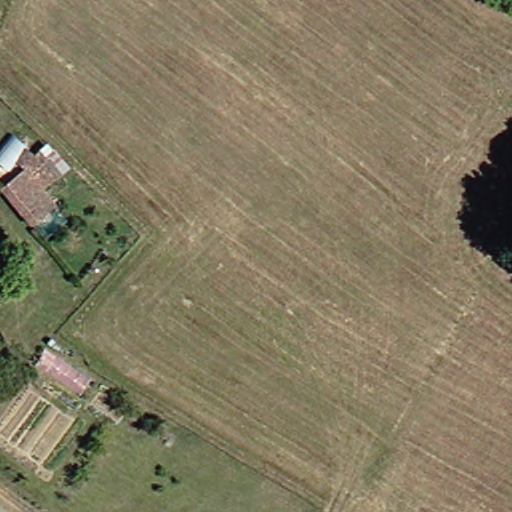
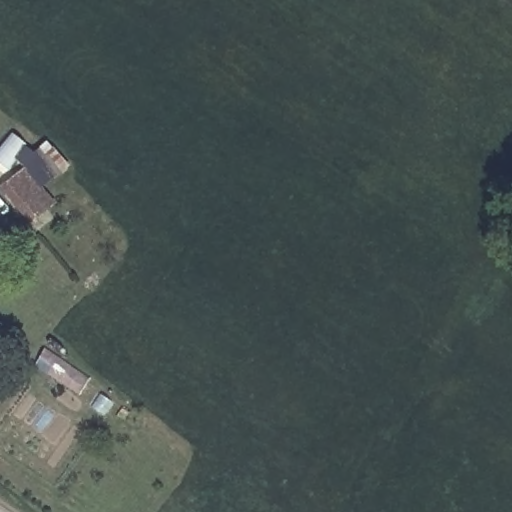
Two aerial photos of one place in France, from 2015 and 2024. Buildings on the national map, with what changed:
unchanged [(0,195),(0,176),(15,166),(5,153),(0,157),(0,135),(4,131),(22,150),(37,137),(58,161),(32,181),(46,198),(17,220),(0,195)]

